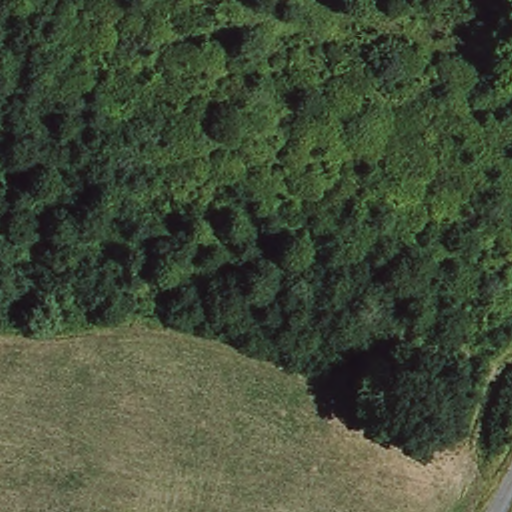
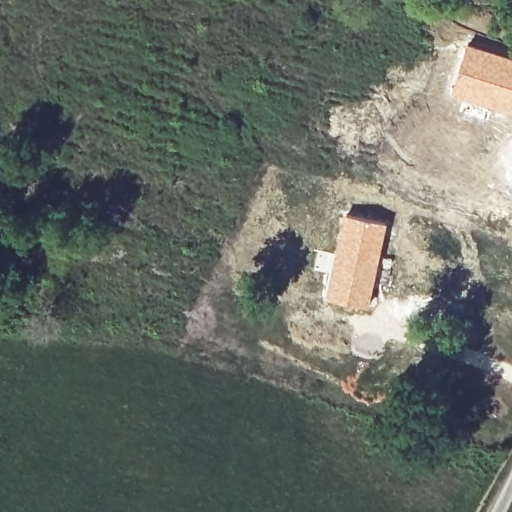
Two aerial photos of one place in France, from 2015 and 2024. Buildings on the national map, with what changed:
new [(467,43),(512,58),(512,107),(510,114),(450,94),(467,43)]
new [(342,212),(388,221),(369,308),(323,298),(342,212)]

